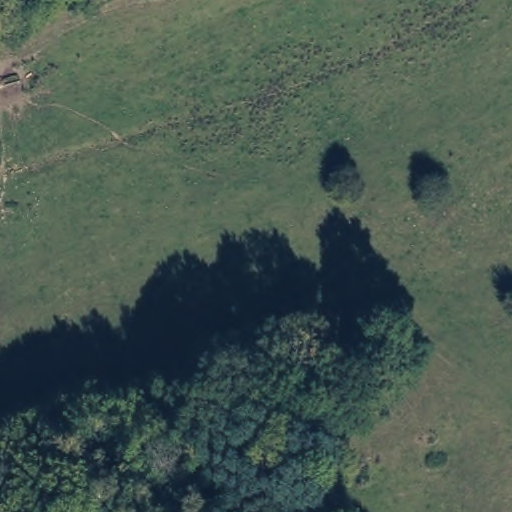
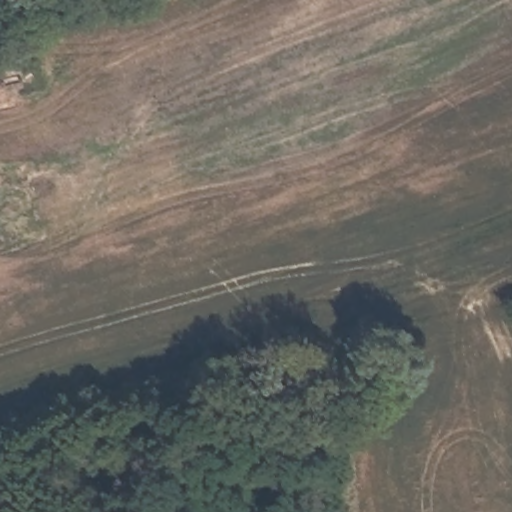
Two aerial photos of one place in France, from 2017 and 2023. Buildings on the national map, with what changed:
[]

